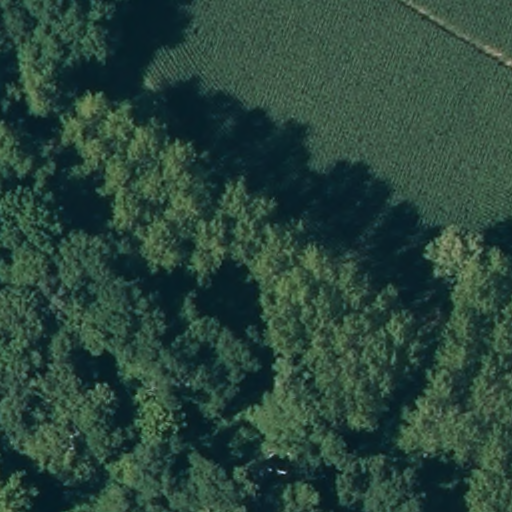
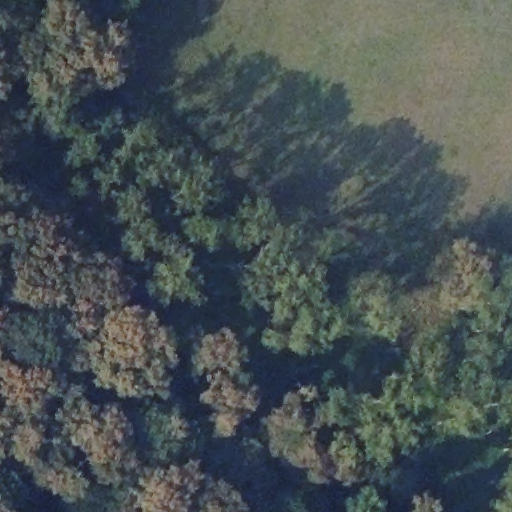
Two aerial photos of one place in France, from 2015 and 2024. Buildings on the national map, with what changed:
[]

